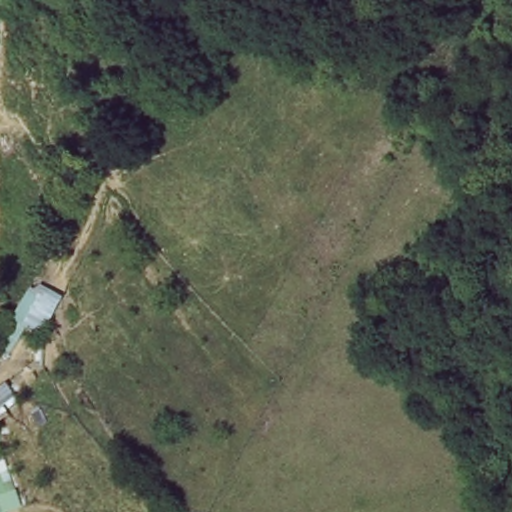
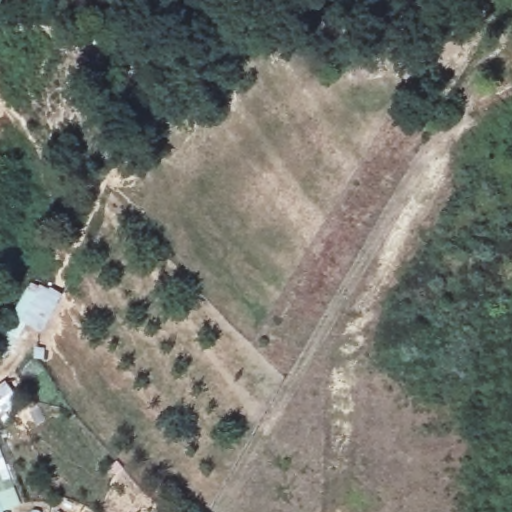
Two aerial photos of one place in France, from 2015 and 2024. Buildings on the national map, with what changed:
unchanged [(25,406),(0,424),(0,373),(25,406)]

